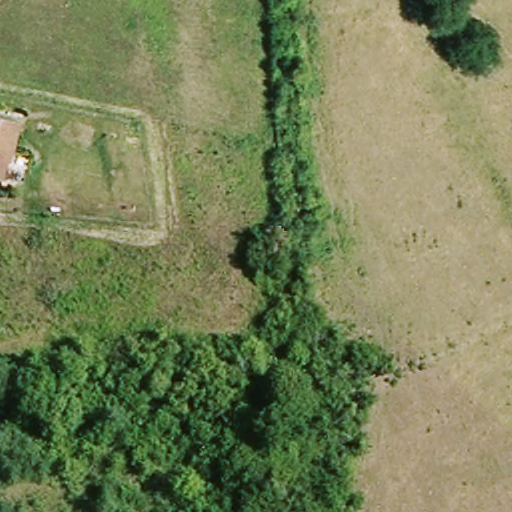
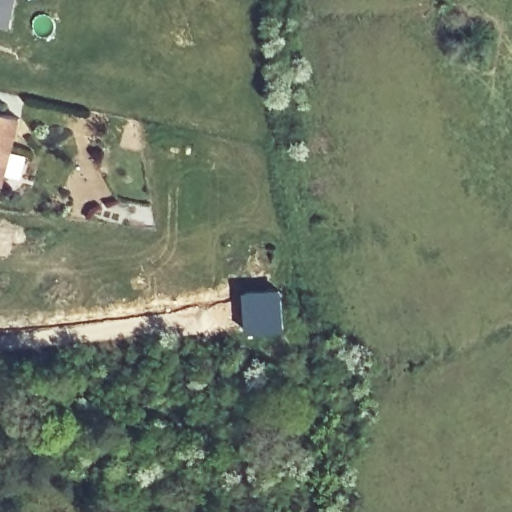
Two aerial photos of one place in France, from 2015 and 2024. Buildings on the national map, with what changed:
new [(10,27),(0,25),(0,0),(16,0),(10,27)]
unchanged [(27,118),(13,187),(0,184),(0,112),(27,118)]
demolished [(283,252),(282,270),(262,267),(263,249),(283,252)]
new [(284,288),(286,335),(244,336),(243,291),(284,288)]

